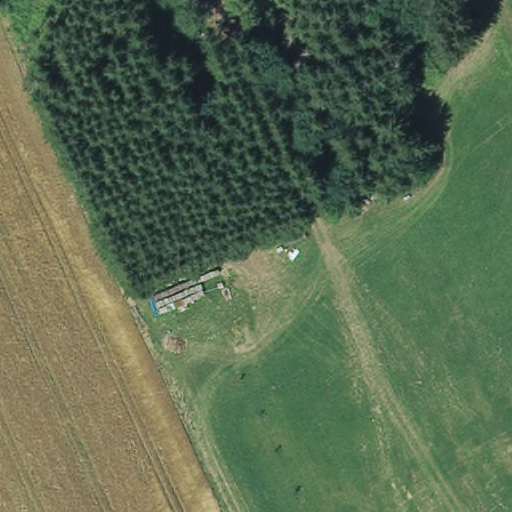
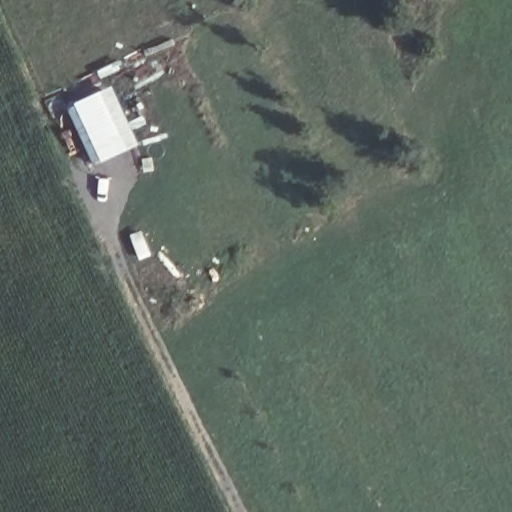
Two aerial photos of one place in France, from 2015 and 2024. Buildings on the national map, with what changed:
new [(115,90),(141,149),(95,167),(71,111),(115,90)]

